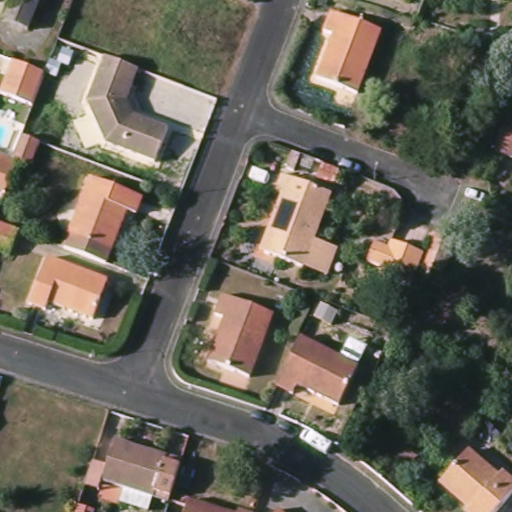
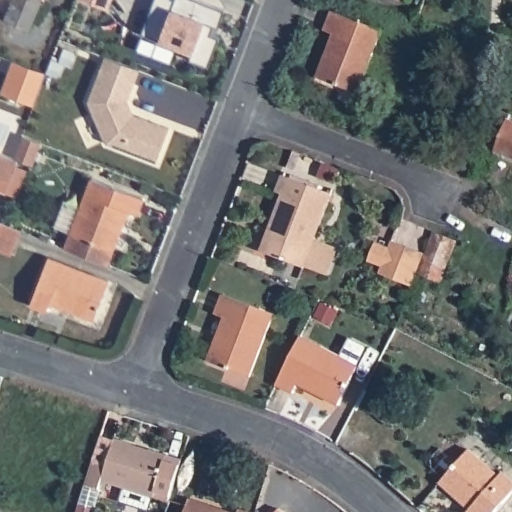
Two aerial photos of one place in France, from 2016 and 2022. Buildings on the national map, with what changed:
unchanged [(7,19),(14,0),(43,0),(31,29),(7,19)]
new [(111,8),(90,0),(114,0),(111,8)]
new [(143,33),(156,0),(201,0),(227,9),(220,27),(216,25),(212,33),(222,37),(211,67),(191,59),(194,52),(176,46),(162,40),(143,33)]
unchanged [(364,96),(322,83),(336,40),(326,37),(333,16),(383,32),(364,96)]
unchanged [(139,70),(127,99),(132,114),(168,127),(156,159),(101,139),(88,98),(105,55),(139,70)]
unchanged [(0,98),(0,97),(12,65),(45,78),(32,110),(0,98)]
unchanged [(512,161),(500,157),(498,161),(486,156),(487,155),(502,113),(512,117),(512,161)]
unchanged [(1,165),(0,165),(0,151),(15,156),(17,158),(26,135),(45,142),(36,165),(22,159),(10,192),(0,189),(0,167),(1,165)]
unchanged [(96,176),(146,196),(139,214),(129,211),(110,264),(68,249),(96,176)]
unchanged [(307,270),(271,257),(291,201),(283,198),(289,183),(334,200),(307,270)]
unchanged [(15,253),(0,248),(0,224),(22,232),(15,253)]
unchanged [(457,247),(440,287),(418,279),(425,260),(435,238),(457,247)]
unchanged [(381,280),(393,248),(425,260),(418,279),(413,293),(381,280)]
unchanged [(96,317),(52,301),(50,309),(34,303),(51,257),(110,281),(96,317)]
unchanged [(254,376),(212,360),(228,317),(220,314),(227,294),(277,313),(254,376)]
unchanged [(362,366),(340,404),(300,384),(295,392),(279,383),(305,336),(362,366)]
unchanged [(96,460),(111,465),(119,441),(137,446),(153,451),(185,461),(172,501),(154,496),(150,510),(121,501),(126,487),(106,481),(102,491),(87,486),(96,460)]
unchanged [(471,512),(470,511),(472,506),(445,481),(472,450),(501,474),(504,471),(512,478),(512,496),(498,512),(471,512)]
unchanged [(225,512),(189,512),(192,501),(225,512)]
unchanged [(79,512),(80,508),(95,512),(79,512)]
unchanged [(285,512),(280,512),(282,509),(285,512)]
unchanged [(242,512),(240,512),(241,511),(242,512)]

